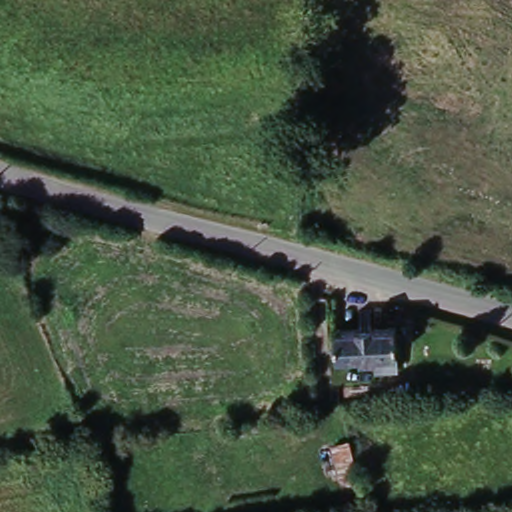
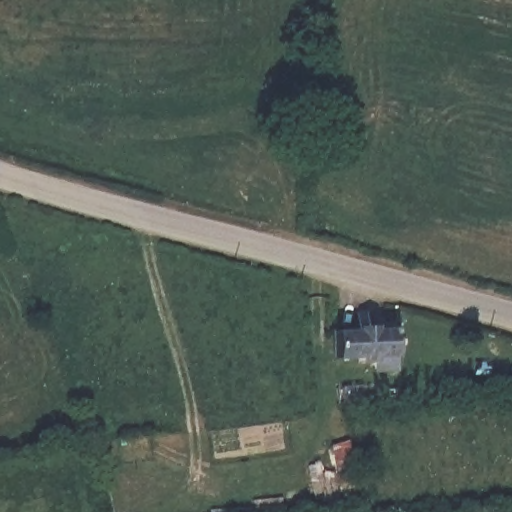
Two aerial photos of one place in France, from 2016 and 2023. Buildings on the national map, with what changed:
unchanged [(395,328),(396,372),(375,372),(375,364),(358,365),(358,358),(334,359),(334,330),(395,328)]

